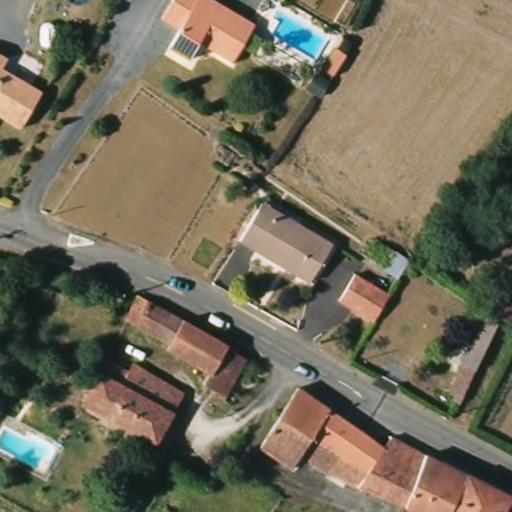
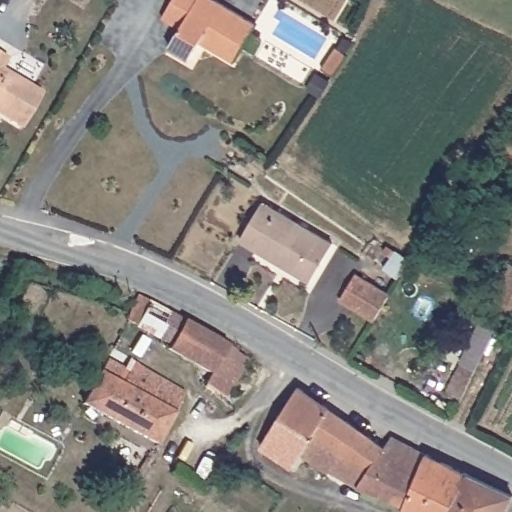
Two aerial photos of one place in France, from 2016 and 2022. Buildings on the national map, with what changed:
unchanged [(181,36),(161,24),(176,0),(206,0),(255,28),(233,66),(216,57),(219,51),(204,42),(200,48),(190,65),(170,54),(181,36)]
unchanged [(329,41),(340,47),(327,68),(317,61),(329,41)]
unchanged [(11,63),(5,73),(44,96),(23,133),(0,120),(0,57),(11,63)]
unchanged [(261,207),(332,251),(309,288),(239,244),(261,207)]
unchanged [(408,267),(397,283),(384,274),(396,258),(408,267)]
unchanged [(483,318),(505,273),(512,276),(512,332),(499,325),(483,318)]
unchanged [(355,280),(390,302),(374,327),(339,306),(355,280)]
unchanged [(225,404),(204,393),(199,390),(197,388),(196,385),(197,377),(194,375),(166,359),(169,353),(126,328),(135,311),(138,304),(187,330),(232,356),(230,358),(244,366),(225,404)]
unchanged [(461,398),(446,391),(483,318),(499,325),(461,398)]
unchanged [(73,406),(88,379),(99,385),(110,364),(135,377),(139,370),(188,397),(161,447),(157,453),(73,406)]
unchanged [(384,453),(371,474),(335,453),(280,421),(297,391),(351,428),(368,440),(383,452),(384,453)]
unchanged [(349,485),(329,475),(328,476),(314,468),(305,461),(299,457),(290,471),(272,460),(261,453),(265,446),(280,421),(335,453),(371,474),(384,453),(383,452),(390,440),(418,455),(429,461),(404,510),(402,510),(363,493),(349,485)]
unchanged [(469,480),(453,512),(408,512),(404,510),(429,461),(469,480)]
unchanged [(503,497),(511,501),(506,512),(453,512),(469,480),(503,497)]

